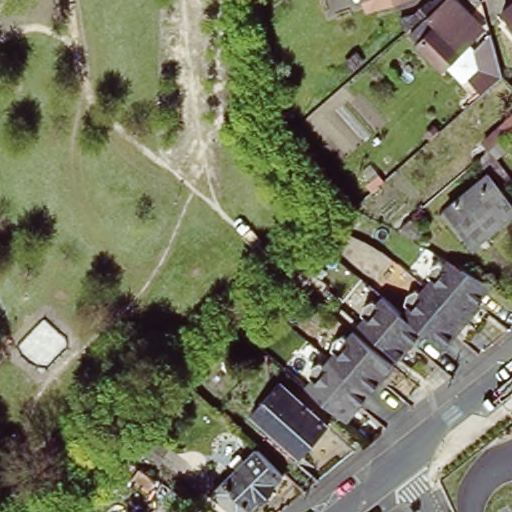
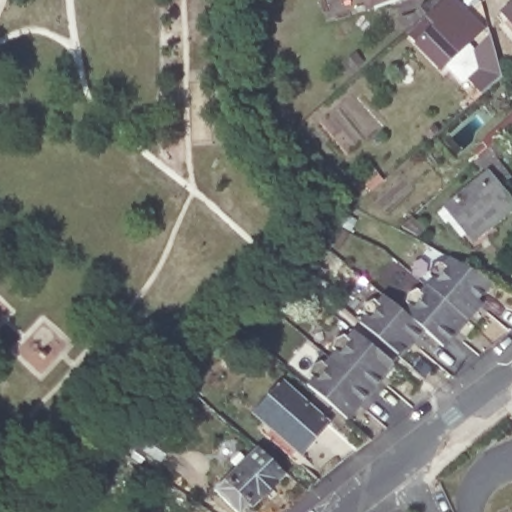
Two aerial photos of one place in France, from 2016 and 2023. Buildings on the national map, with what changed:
unchanged [(369,0),(394,0),(371,8),(369,0)]
unchanged [(456,0),(463,6),(482,25),(475,30),(465,39),(467,40),(440,63),(407,29),(428,9),(438,0),(456,0)]
unchanged [(495,15),(511,1),(512,2),(512,32),(498,17),(495,15)]
unchanged [(505,75),(482,95),(470,76),(479,69),(480,61),(477,45),(495,38),(505,75)]
unchanged [(445,204),(489,169),(512,197),(512,208),(474,239),(445,204)]
unchanged [(404,312),(409,307),(407,305),(409,294),(421,288),(423,290),(427,285),(432,279),(430,277),(432,266),(445,261),(447,262),(451,255),(494,280),(479,298),(483,301),(468,319),(445,346),(426,330),(402,358),(362,322),(365,318),(362,317),(365,304),(376,300),(380,302),(384,296),(404,312)]
unchanged [(332,352),(334,341),(347,335),(350,337),(355,331),(395,367),(372,395),(348,422),(307,387),(312,382),(310,380),(312,368),(322,363),(325,365),(334,354),(332,352)]
unchanged [(330,424),(305,453),(255,412),(282,382),(330,424)]
unchanged [(229,433),(232,429),(239,434),(234,438),(229,433)]
unchanged [(253,503),(250,500),(242,508),(218,484),(260,442),(265,447),(285,469),(253,503)]
unchanged [(176,465),(167,476),(146,458),(157,447),(176,465)]
unchanged [(131,480),(139,468),(155,478),(147,490),(131,480)]

